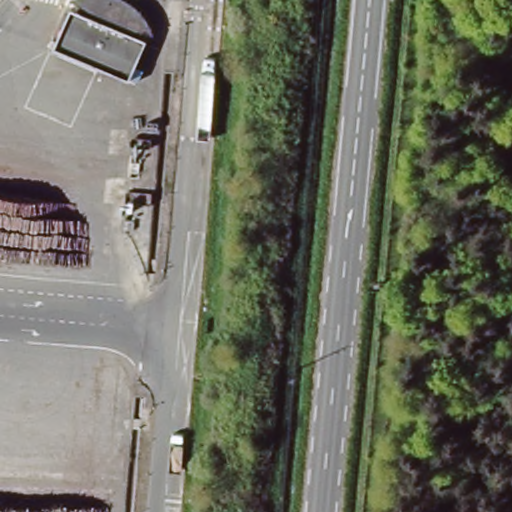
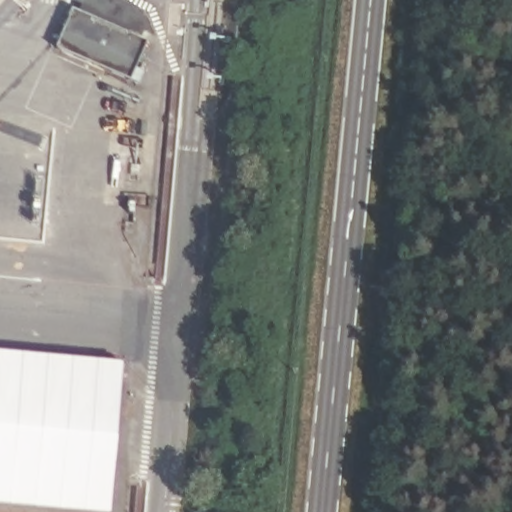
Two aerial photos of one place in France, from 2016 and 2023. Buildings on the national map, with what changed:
unchanged [(140,2),(152,34),(132,85),(66,56),(91,0),(101,0),(140,2)]
new [(82,512),(0,504),(0,351),(122,362),(109,512),(82,512)]

